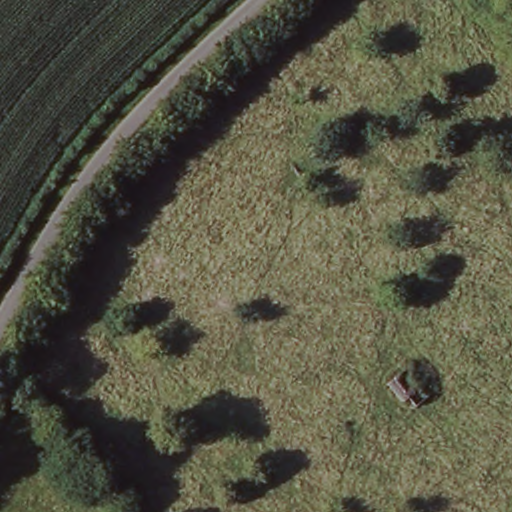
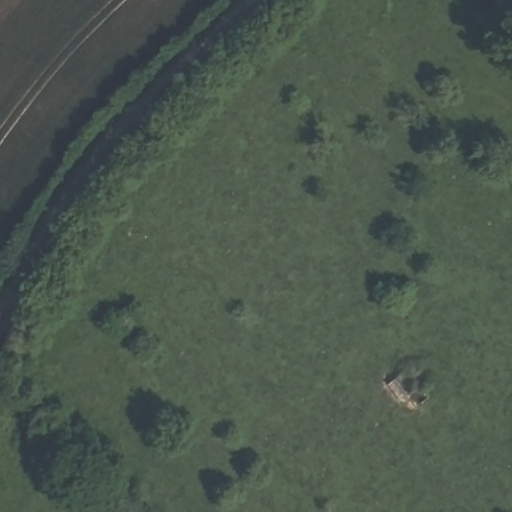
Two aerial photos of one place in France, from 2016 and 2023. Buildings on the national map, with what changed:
unchanged [(433,400),(412,417),(401,402),(406,399),(393,379),(407,369),(433,400)]

